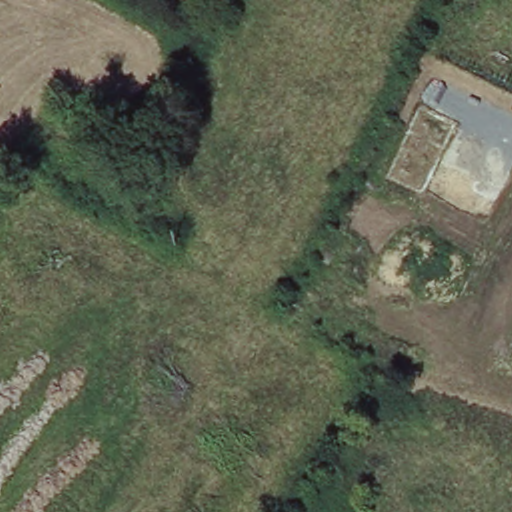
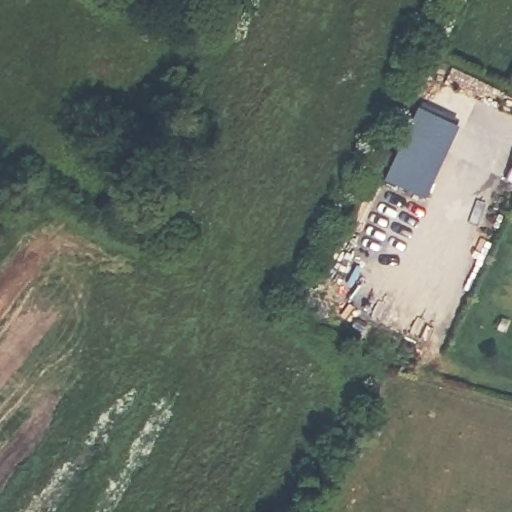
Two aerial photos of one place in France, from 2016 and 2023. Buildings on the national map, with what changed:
new [(456,122),(423,195),(389,179),(418,106),(456,122)]
demolished [(300,163),(292,181),(267,171),(276,152),(300,163)]

